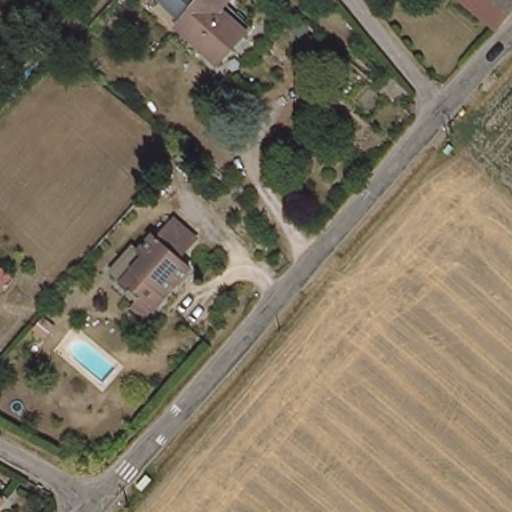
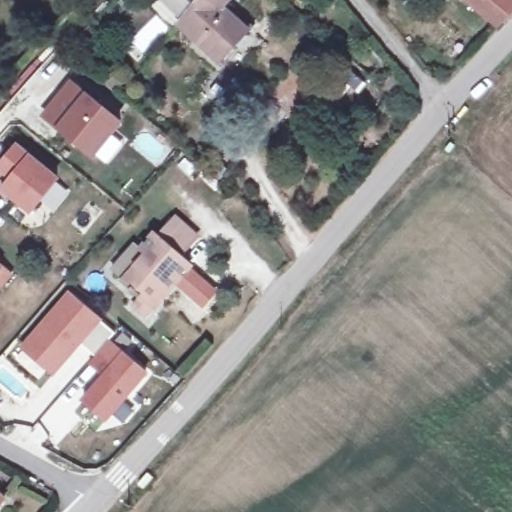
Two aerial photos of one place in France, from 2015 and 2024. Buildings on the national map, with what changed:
unchanged [(230,8),(255,30),(223,65),(182,27),(188,20),(167,0),(237,0),(230,8)]
unchanged [(512,2),(512,20),(503,30),(465,0),(509,0),(512,2)]
unchanged [(512,2),(509,0),(512,0),(512,2)]
new [(72,84),(87,97),(120,124),(93,156),(60,129),(45,117),(72,84)]
new [(12,177),(0,166),(0,164),(17,145),(60,180),(30,215),(2,190),(12,177)]
unchanged [(145,307),(150,302),(140,294),(142,291),(134,285),(123,273),(146,247),(152,253),(165,238),(168,241),(185,221),(206,241),(189,260),(200,270),(165,311),(158,319),(145,307)]
unchanged [(2,271),(0,273),(0,270),(2,271)]
new [(22,349),(70,292),(117,333),(112,341),(127,353),(150,374),(108,423),(82,401),(105,377),(90,364),(98,356),(83,343),(55,377),(22,349)]
unchanged [(3,489),(0,493),(0,487),(3,489)]

